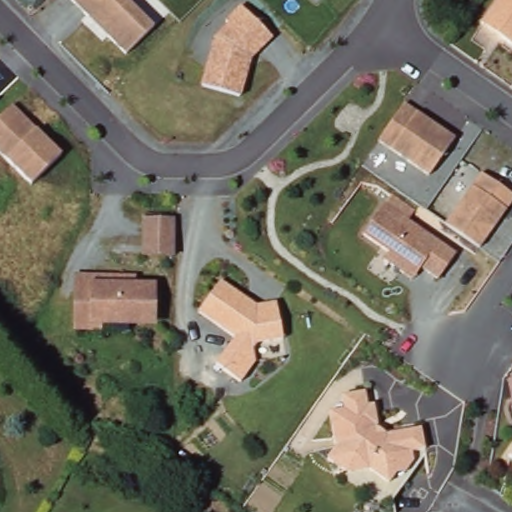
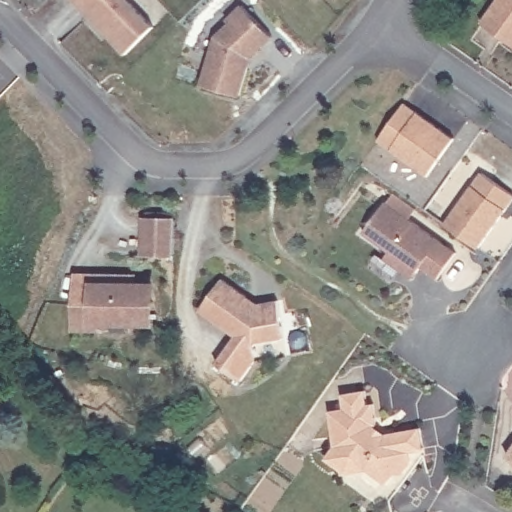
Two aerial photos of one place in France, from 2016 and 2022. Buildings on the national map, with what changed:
unchanged [(125,0),(154,29),(127,56),(71,0),(125,0)]
unchanged [(498,0),(512,0),(512,48),(500,40),(480,26),(483,22),(498,0)]
unchanged [(199,85),(222,33),(235,20),(232,16),(247,1),(277,31),(249,60),(236,97),(199,85)]
unchanged [(452,140),(427,178),(376,144),(384,132),(401,106),(452,140)]
demolished [(59,158),(29,187),(0,159),(0,118),(9,109),(59,158)]
unchanged [(479,175),(512,198),(512,199),(477,250),(443,227),(479,175)]
unchanged [(454,249),(435,278),(422,270),(414,280),(385,260),(388,254),(361,234),(385,198),(454,249)]
unchanged [(139,221),(169,221),(169,256),(139,256),(139,221)]
unchanged [(88,332),(88,326),(68,326),(68,287),(68,278),(101,278),(120,278),(120,287),(140,287),(139,320),(120,320),(120,332),(88,332)]
unchanged [(223,280),(259,304),(279,300),(286,337),(259,342),(255,347),(258,360),(244,381),(219,364),(238,336),(201,311),(223,280)]
unchanged [(385,482),(366,466),(347,477),(328,461),(331,446),(325,411),(339,408),(336,394),(359,390),(362,405),(369,403),(370,425),(368,425),(380,433),(415,427),(419,448),(409,450),(411,462),(401,473),(393,473),(385,482)]
unchanged [(509,460),(512,455),(512,462),(509,460)]

